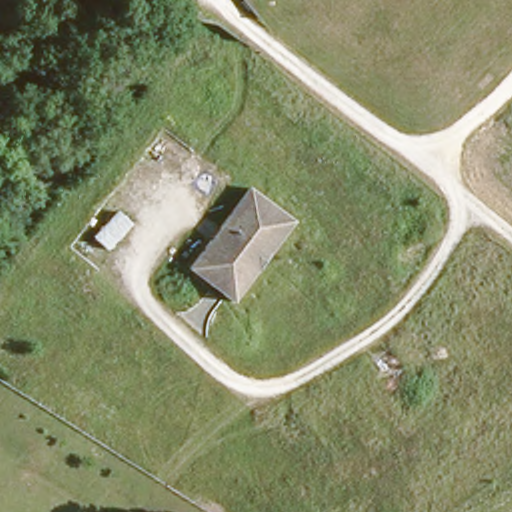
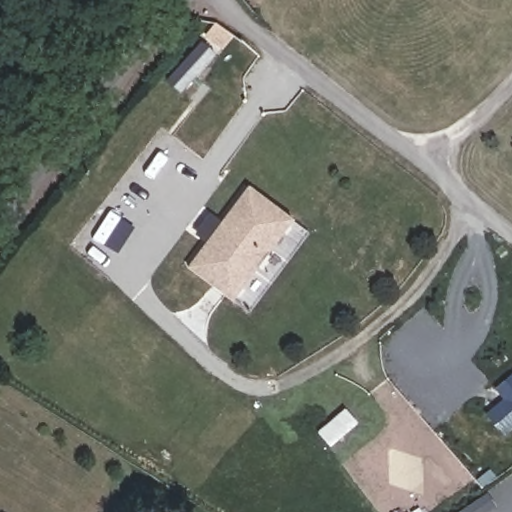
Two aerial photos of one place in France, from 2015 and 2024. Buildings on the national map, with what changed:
unchanged [(237,303),(191,268),(251,189),(297,223),(237,303)]
new [(496,389),(512,375),(512,428),(503,436),(485,415),(505,398),(496,389)]

